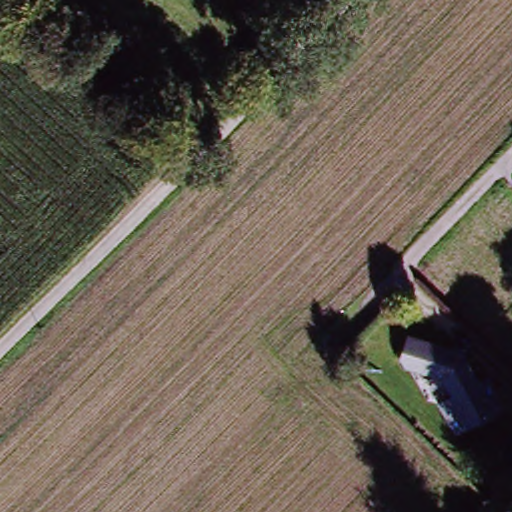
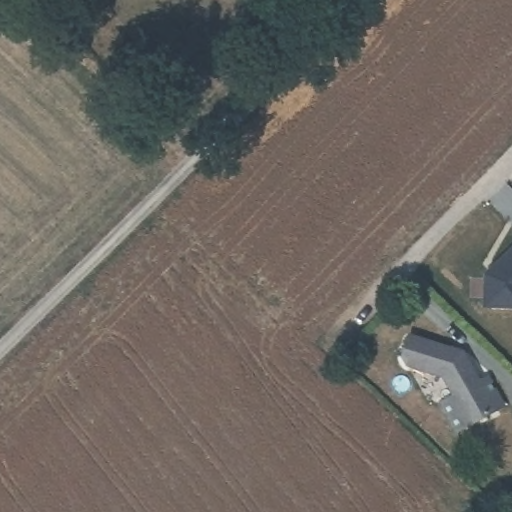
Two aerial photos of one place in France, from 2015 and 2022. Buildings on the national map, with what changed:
new [(483,274),(512,246),(512,308),(482,308),(483,274)]
unchanged [(457,395),(447,377),(415,365),(411,358),(418,338),(464,354),(480,383),(489,378),(504,406),(457,431),(442,403),(457,395)]

